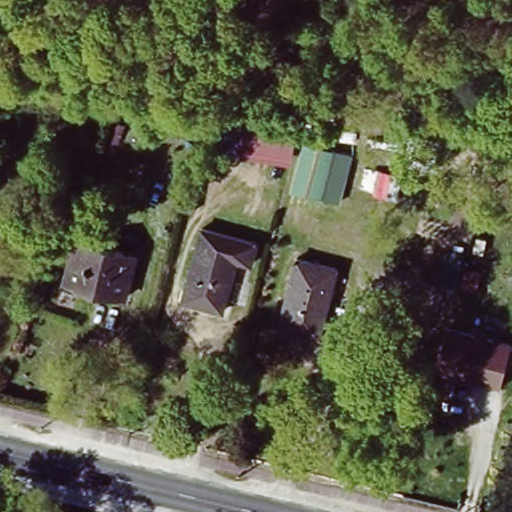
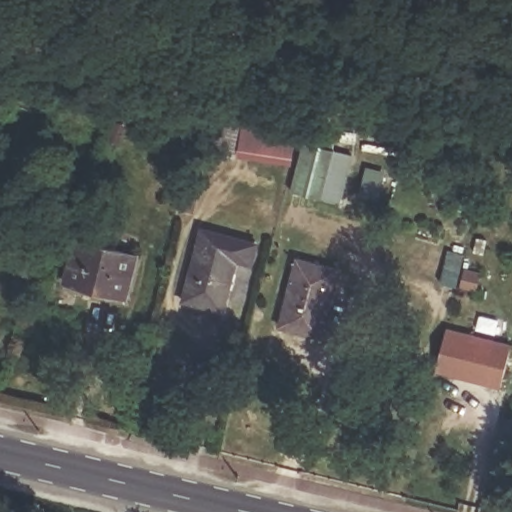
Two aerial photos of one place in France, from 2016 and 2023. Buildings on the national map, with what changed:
unchanged [(334,149),(322,198),(291,190),(302,142),(334,149)]
unchanged [(195,177),(187,207),(171,203),(179,172),(195,177)]
unchanged [(112,236),(107,253),(135,260),(124,303),(62,287),(77,227),(112,236)]
unchanged [(449,282),(432,277),(441,247),(457,251),(449,282)]
unchanged [(177,321),(196,248),(252,263),(246,284),(231,280),(216,332),(177,321)]
unchanged [(284,308),(296,264),(336,275),(318,342),(287,334),(277,331),(284,308)]
unchanged [(512,335),(512,344),(504,378),(439,362),(450,320),(512,335)]

